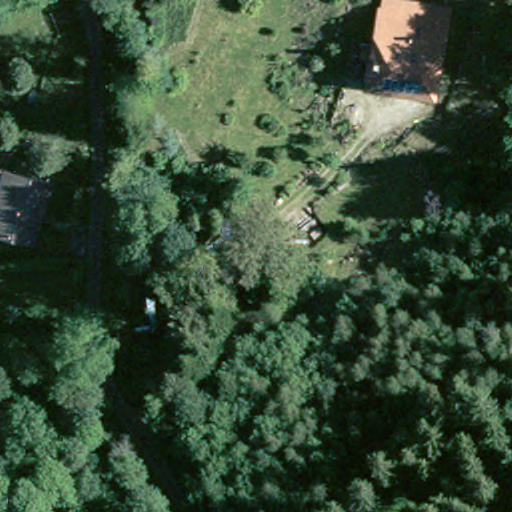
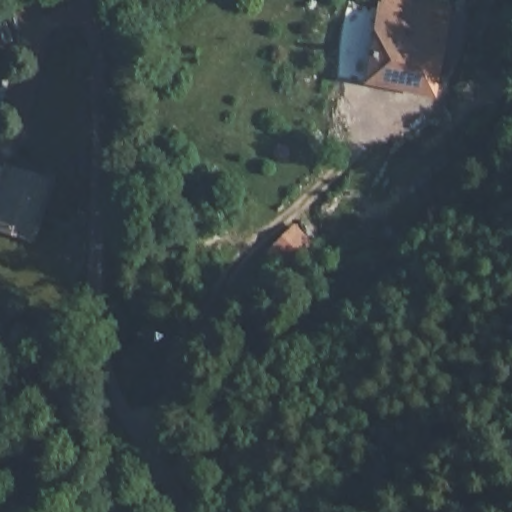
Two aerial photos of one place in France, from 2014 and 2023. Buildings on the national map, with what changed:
unchanged [(445,24),(445,25),(431,96),(361,84),(367,57),(358,55),(357,55),(360,46),(367,48),(375,14),(376,10),(383,11),(385,0),(393,0),(390,13),(393,14),(445,24)]
unchanged [(47,186),(30,240),(0,231),(0,171),(4,172),(47,186)]

